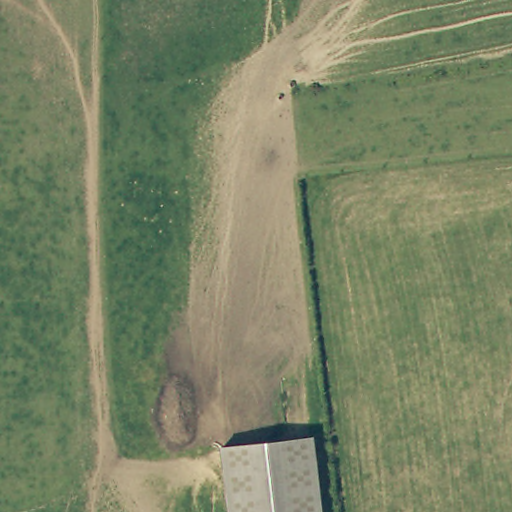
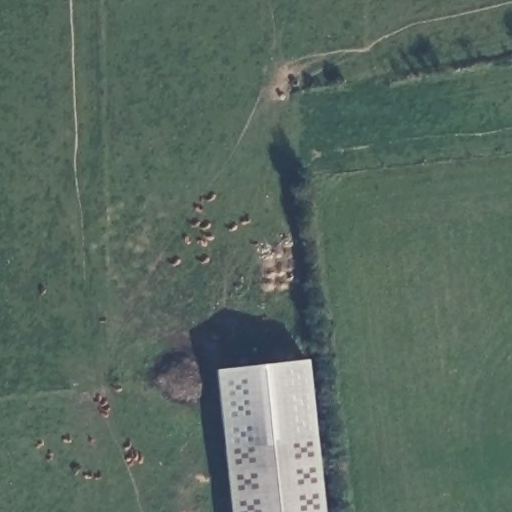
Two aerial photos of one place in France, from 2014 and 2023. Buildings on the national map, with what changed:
new [(224,445),(214,369),(307,359),(315,435),(224,445)]
unchanged [(315,435),(323,512),(232,512),(224,445),(315,435)]

